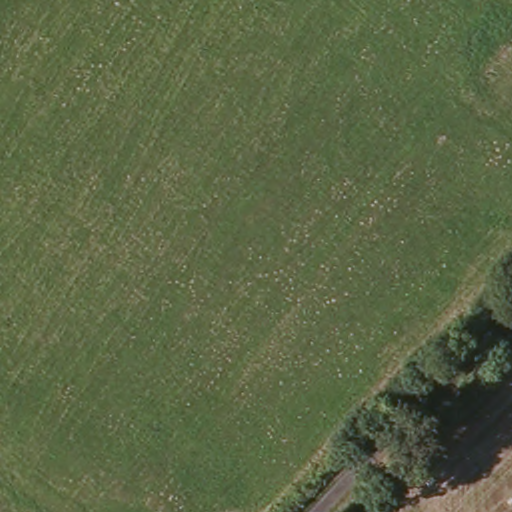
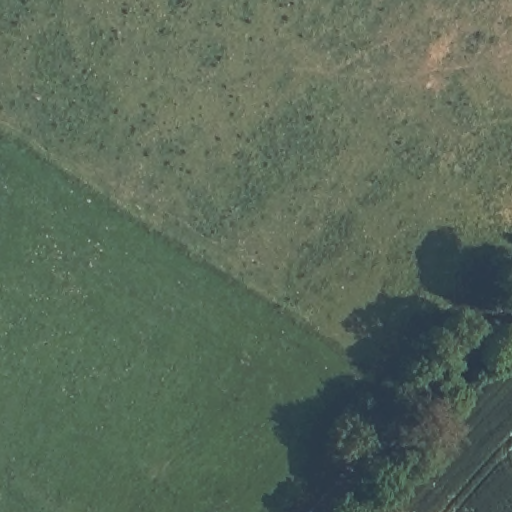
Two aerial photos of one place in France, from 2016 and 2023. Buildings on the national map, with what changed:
[]

